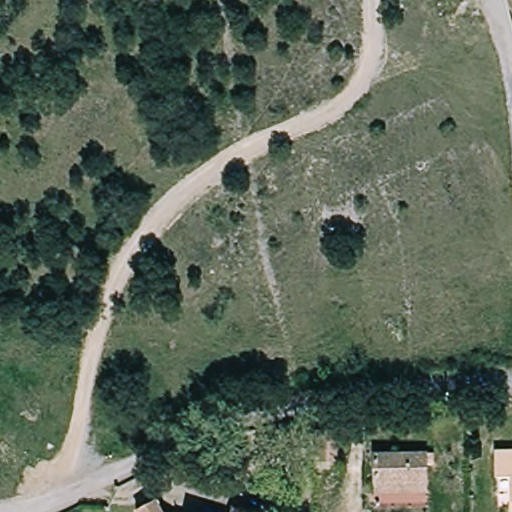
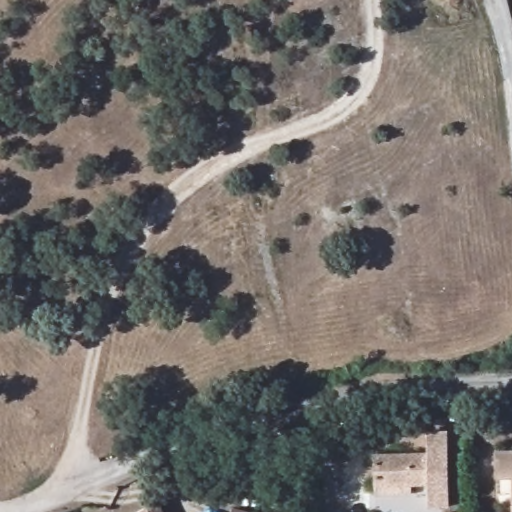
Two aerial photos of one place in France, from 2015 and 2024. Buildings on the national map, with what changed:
unchanged [(329,464),(328,427),(349,427),(349,464),(329,464)]
new [(427,430),(447,429),(449,508),(430,508),(430,495),(429,457),(427,430)]
unchanged [(430,495),(376,497),(375,459),(429,457),(430,495)]
unchanged [(496,461),(512,461),(512,485),(497,485),(496,461)]
new [(459,511),(459,512),(443,512),(442,511),(459,511)]

